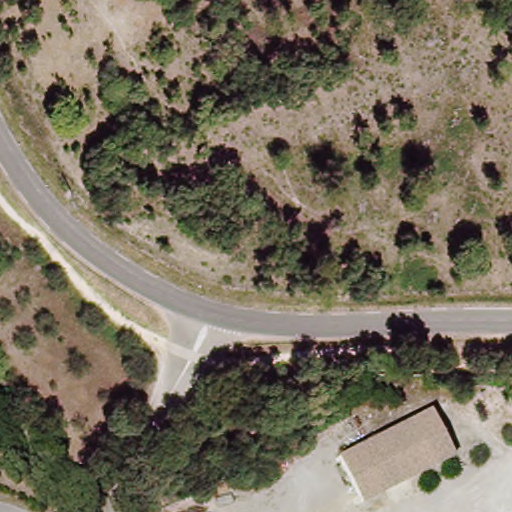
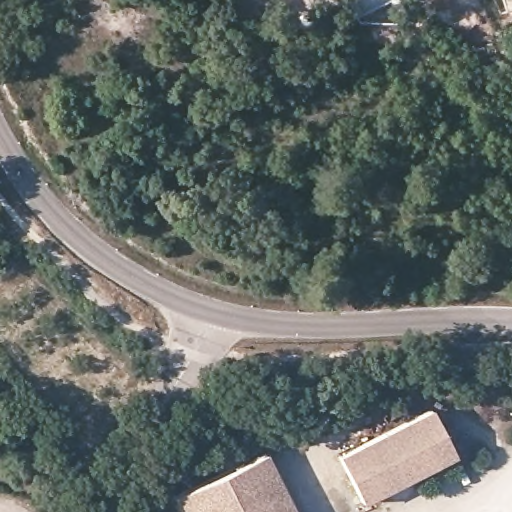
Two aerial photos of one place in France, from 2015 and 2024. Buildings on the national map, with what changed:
unchanged [(430,410),(452,456),(381,490),(378,491),(359,500),(337,454),(430,410)]
new [(183,512),(175,497),(265,454),(266,453),(295,512),(183,512)]

